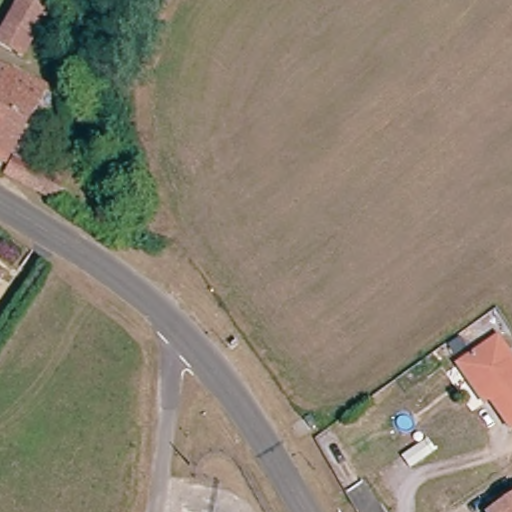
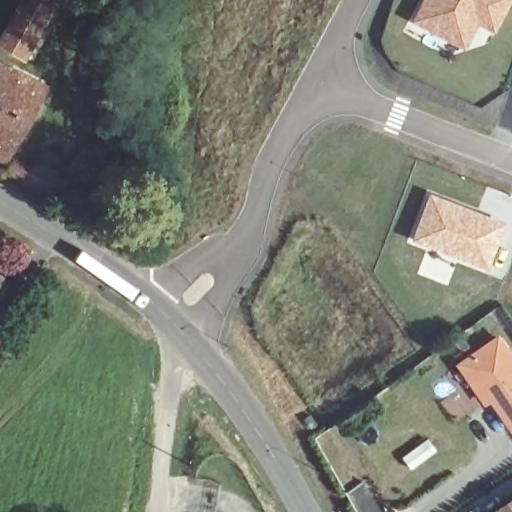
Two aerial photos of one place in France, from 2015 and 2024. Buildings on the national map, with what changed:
new [(449,56),(407,36),(426,0),(510,0),(485,46),(449,56)]
unchanged [(21,7),(44,17),(29,57),(5,47),(21,7)]
unchanged [(0,166),(0,73),(8,77),(36,89),(4,167),(0,166)]
unchanged [(9,182),(15,169),(38,182),(44,171),(65,183),(54,207),(31,195),(9,182)]
new [(506,222),(489,271),(411,241),(429,194),(506,222)]
unchanged [(502,344),(512,360),(512,435),(489,401),(478,407),(457,375),(502,344)]
unchanged [(431,461),(439,472),(414,491),(406,478),(431,461)]
unchanged [(512,510),(512,512),(510,512),(512,510)]

